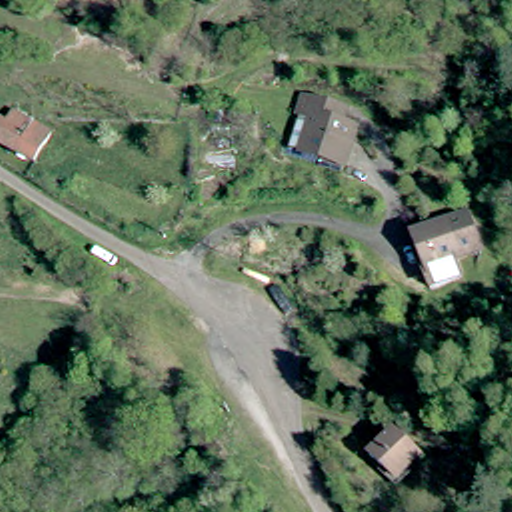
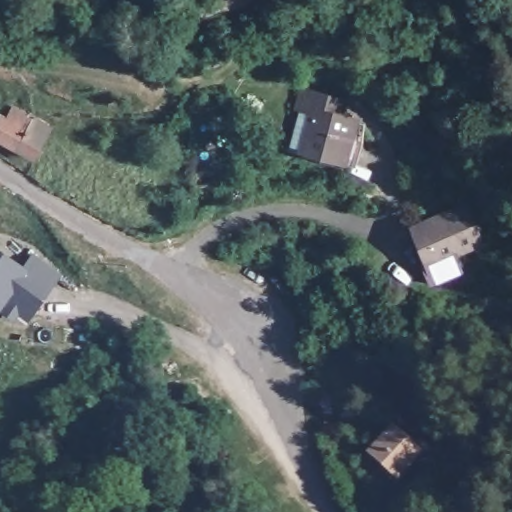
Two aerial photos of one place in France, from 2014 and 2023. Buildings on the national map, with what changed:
unchanged [(512,68),(506,60),(512,54),(512,68)]
unchanged [(306,91),(348,106),(341,124),(354,129),(340,164),(287,143),(306,91)]
unchanged [(4,123),(13,109),(48,133),(31,162),(0,143),(0,121),(4,123)]
unchanged [(454,205),(479,240),(434,271),(411,238),(454,205)]
new [(23,264),(31,254),(61,277),(28,323),(18,315),(13,323),(0,314),(0,249),(23,264)]
unchanged [(369,454),(394,428),(419,453),(396,479),(369,454)]

